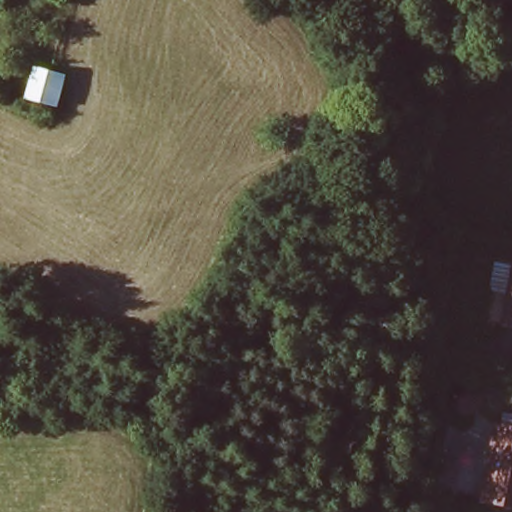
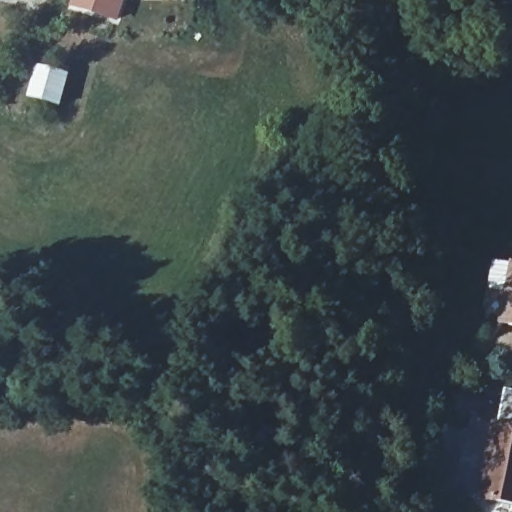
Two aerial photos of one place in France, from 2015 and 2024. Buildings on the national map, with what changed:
new [(70,8),(73,0),(127,0),(120,24),(70,8)]
unchanged [(72,73),(65,106),(25,101),(33,59),(72,73)]
unchanged [(512,275),(512,322),(501,319),(512,275)]
unchanged [(500,374),(504,382),(502,392),(481,401),(460,398),(449,387),(480,367),(500,374)]
unchanged [(512,503),(481,497),(499,419),(512,422),(512,503)]

